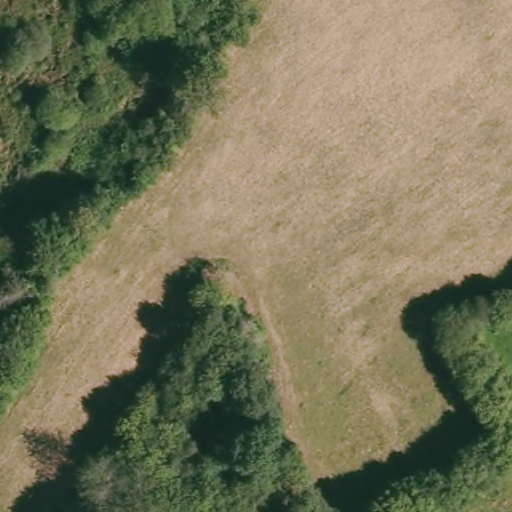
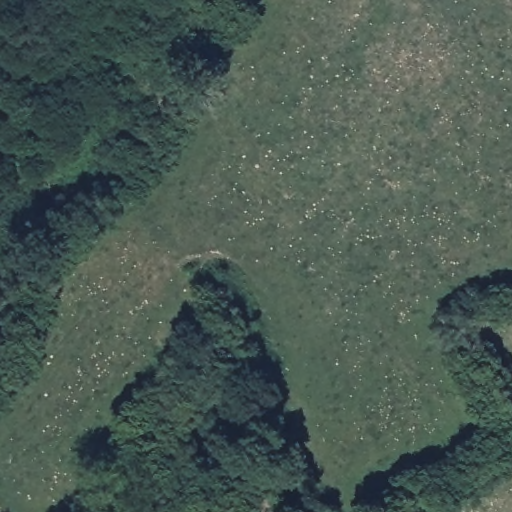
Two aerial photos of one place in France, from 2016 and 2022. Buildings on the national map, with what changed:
[]

